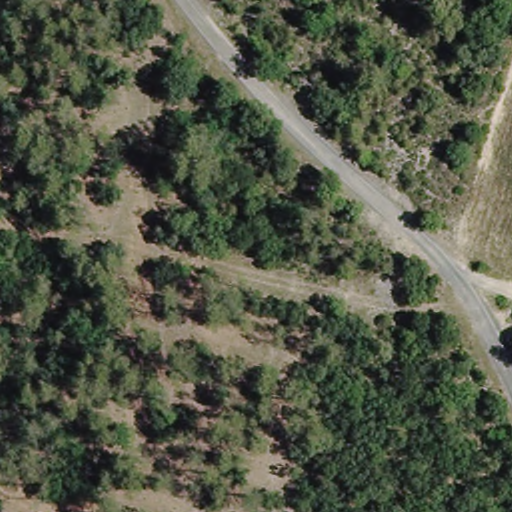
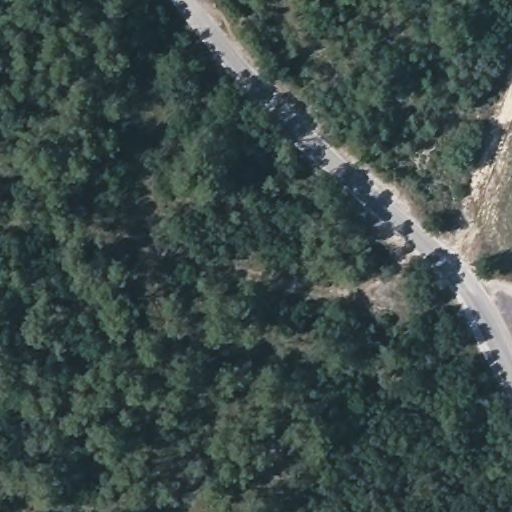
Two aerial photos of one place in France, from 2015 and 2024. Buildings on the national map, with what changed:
[]

